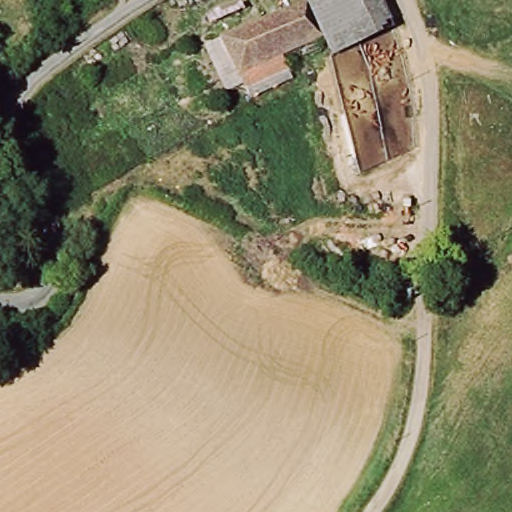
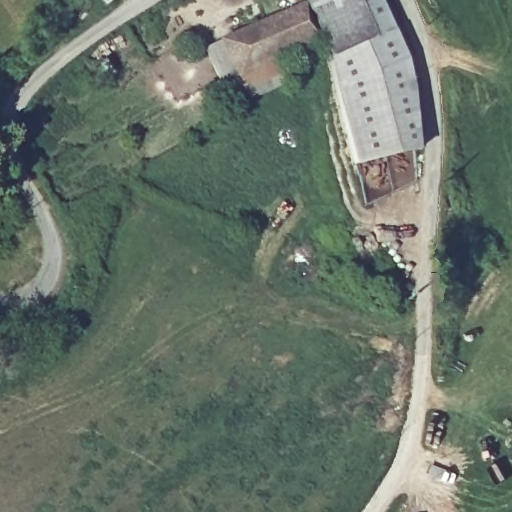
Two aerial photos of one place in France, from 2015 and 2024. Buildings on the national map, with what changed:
unchanged [(389,36),(334,59),(326,39),(310,4),(319,0),(375,0),(389,36)]
unchanged [(320,42),(321,53),(250,82),(247,73),(240,74),(226,40),(310,4),(326,39),(320,42)]
new [(351,168),(325,62),(334,59),(389,36),(394,33),(405,58),(412,90),(415,152),(351,168)]
new [(290,83),(248,102),(241,87),(223,96),(202,50),(226,40),(240,74),(247,73),(250,82),(283,69),(290,83)]

